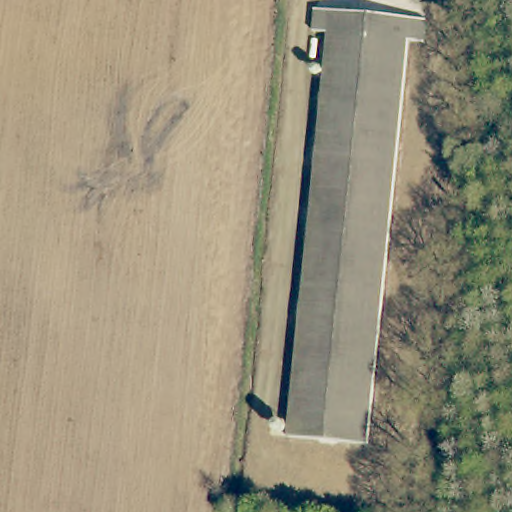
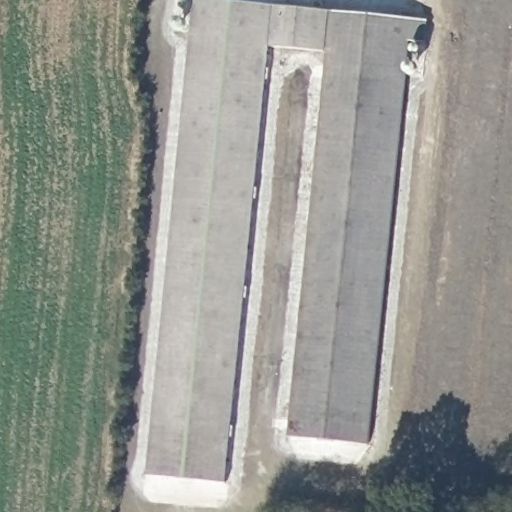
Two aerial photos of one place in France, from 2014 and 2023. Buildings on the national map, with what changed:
new [(335,32),(332,52),(271,46),(228,483),(149,476),(196,0),(207,0),(316,10),(314,30),(335,32)]
unchanged [(426,22),(423,45),(408,43),(364,444),(291,436),(335,32),(314,30),(316,10),(426,22)]

